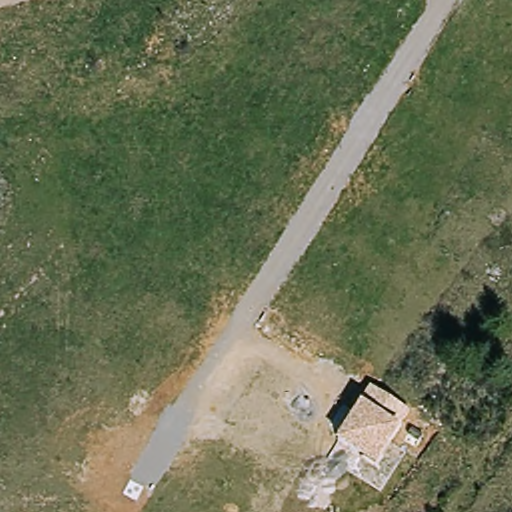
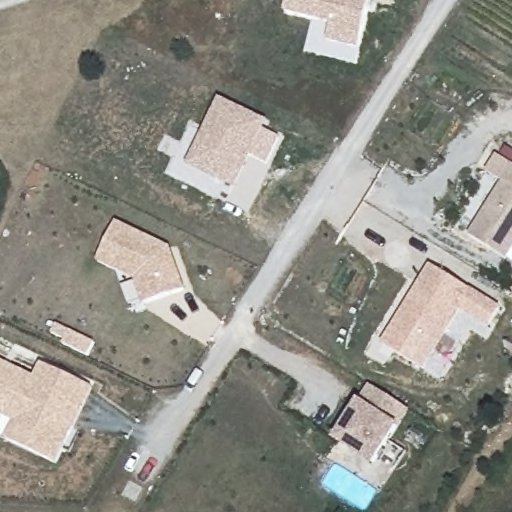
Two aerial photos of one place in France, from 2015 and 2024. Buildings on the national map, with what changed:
new [(359,50),(328,42),(332,25),(285,14),(288,0),(371,0),(359,50)]
new [(264,129),(281,137),(268,165),(251,157),(235,189),(187,166),(220,97),(268,121),(264,129)]
new [(485,172),(494,156),(512,166),(512,251),(507,260),(467,236),(500,182),(485,172)]
new [(170,247),(185,289),(144,304),(135,280),(98,262),(116,222),(170,247)]
new [(488,327),(459,311),(424,371),(382,345),(429,265),(500,307),(488,327)]
new [(35,380),(43,365),(92,388),(57,463),(0,436),(0,363),(35,380)]
unchanged [(409,409),(397,427),(375,467),(337,442),(360,402),(371,386),(409,409)]

